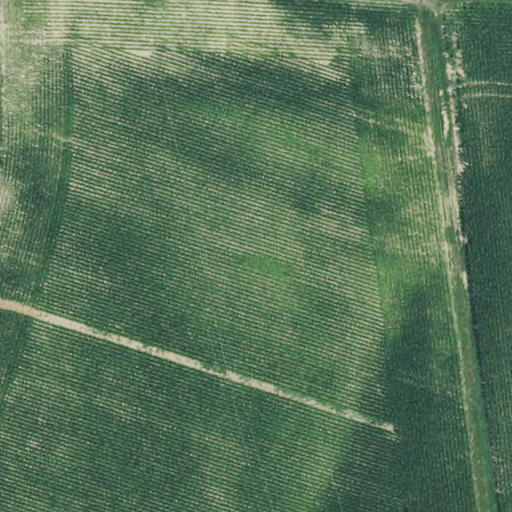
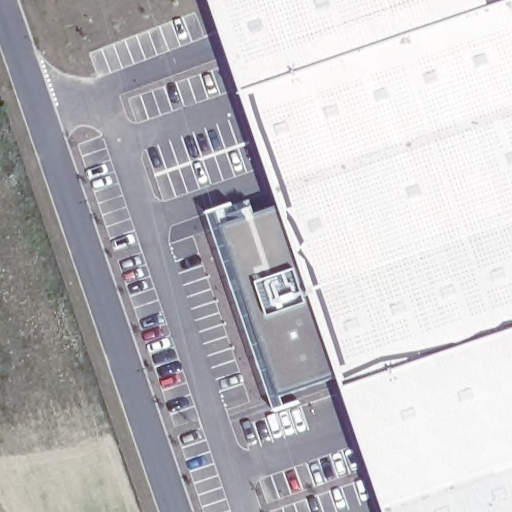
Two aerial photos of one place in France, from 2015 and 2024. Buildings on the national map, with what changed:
new [(512,512),(374,512),(207,0),(512,0),(512,512)]

